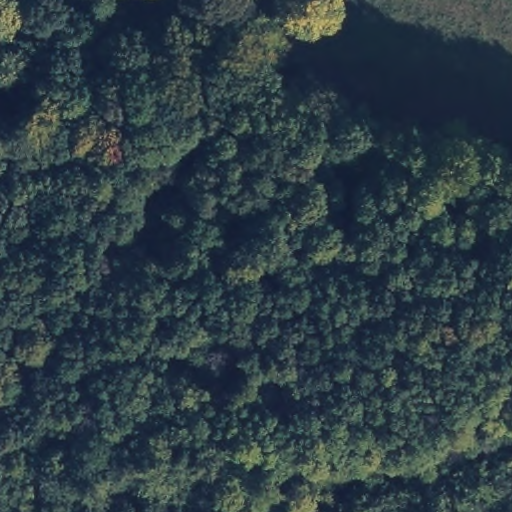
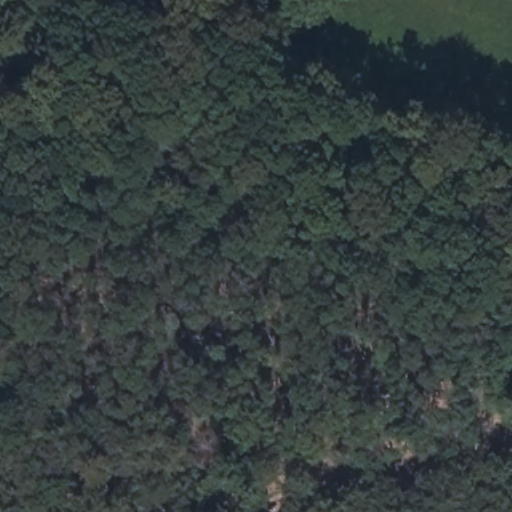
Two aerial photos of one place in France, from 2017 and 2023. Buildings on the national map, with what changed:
[]

